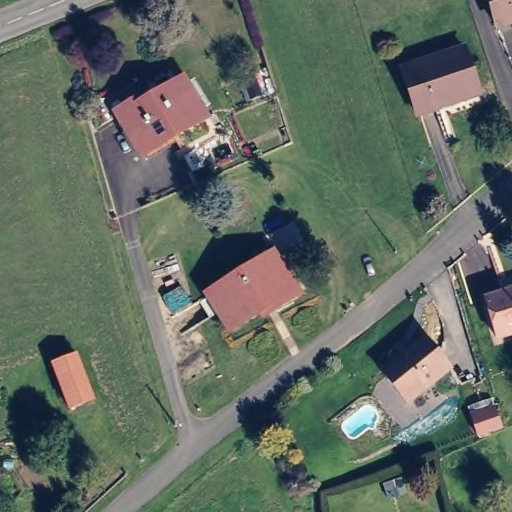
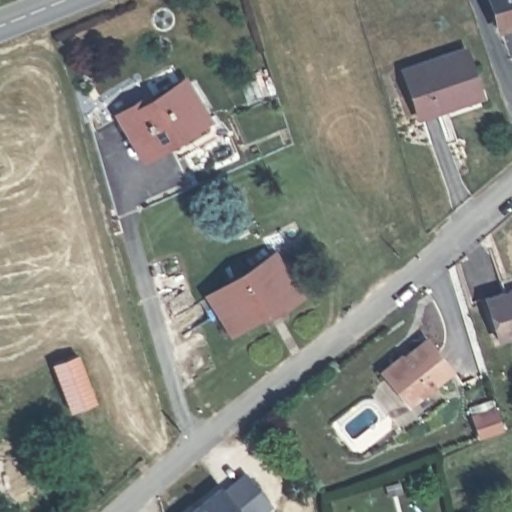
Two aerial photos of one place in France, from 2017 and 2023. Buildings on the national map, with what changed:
unchanged [(512,0),(512,21),(500,25),(493,0),(512,0)]
unchanged [(465,46),(477,88),(445,100),(432,56),(465,46)]
unchanged [(445,100),(446,106),(420,114),(407,64),(432,56),(445,100)]
unchanged [(145,100),(148,105),(180,86),(201,124),(140,159),(115,116),(145,100)]
unchanged [(200,291),(278,248),(307,294),(230,343),(200,291)]
unchanged [(481,297),(512,289),(512,333),(491,340),(481,297)]
unchanged [(380,368),(399,352),(400,354),(423,336),(449,367),(406,401),(380,368)]
unchanged [(73,354),(91,402),(66,410),(50,362),(73,354)]
unchanged [(459,433),(482,424),(490,443),(466,452),(459,433)]
new [(220,485),(223,490),(245,472),(271,506),(263,512),(186,512),(220,485)]

